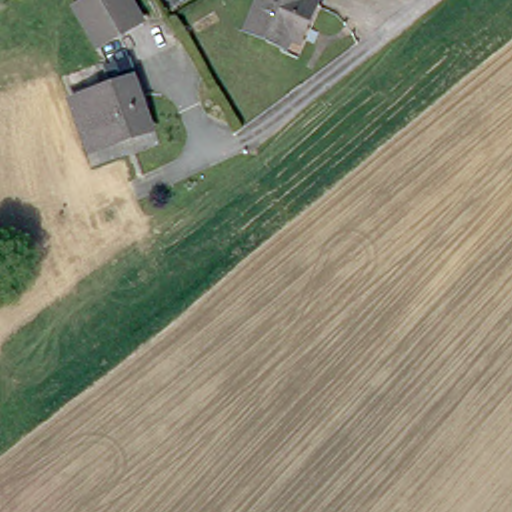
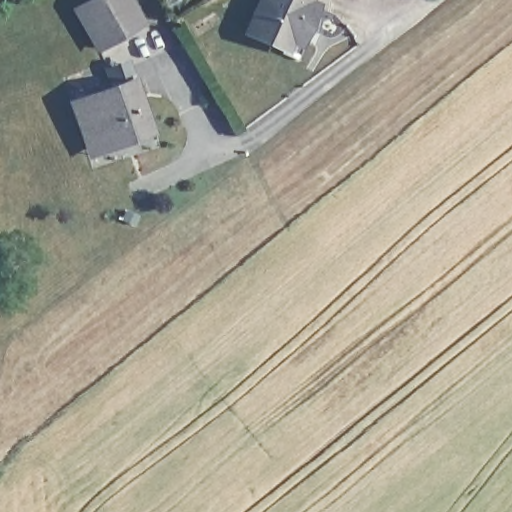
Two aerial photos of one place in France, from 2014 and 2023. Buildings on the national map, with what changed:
unchanged [(141,15),(98,42),(74,5),(82,0),(131,0),(141,15)]
unchanged [(287,44),(283,54),(280,53),(244,40),(259,0),(304,0),(302,6),(311,10),(303,29),(296,47),(287,44)]
unchanged [(87,143),(70,100),(130,75),(151,126),(130,135),(90,151),(87,143)]

